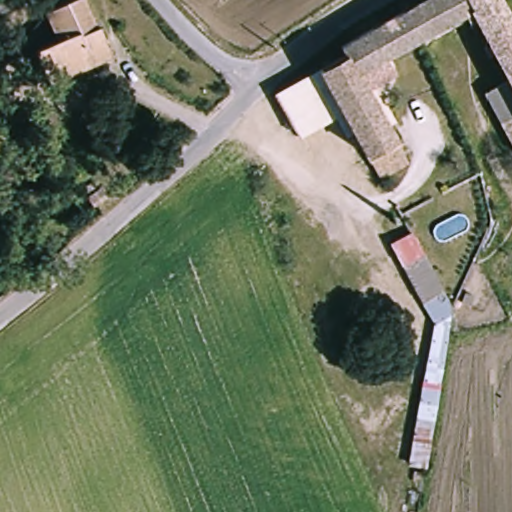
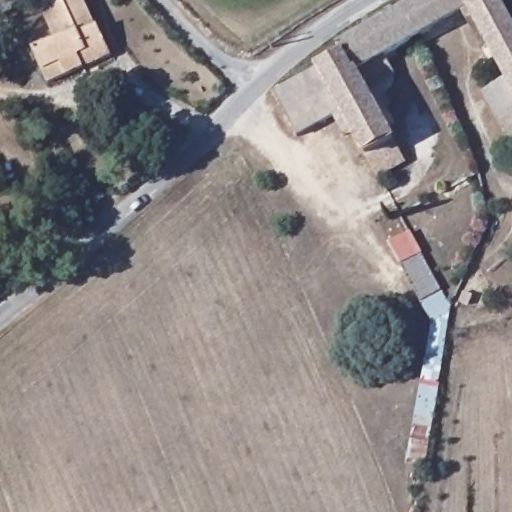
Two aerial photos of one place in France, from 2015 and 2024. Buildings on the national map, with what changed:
unchanged [(36,76),(25,55),(48,43),(34,18),(66,0),(72,0),(95,44),(101,55),(77,68),(59,78),(41,87),(36,76)]
unchanged [(407,2),(411,7),(425,0),(500,0),(512,24),(512,33),(489,44),(480,48),(460,17),(419,37),(402,4),(407,2)]
unchanged [(353,71),(344,53),(338,46),(372,28),(368,22),(377,18),(380,24),(400,13),(397,7),(402,4),(419,37),(353,71)]
unchanged [(510,83),(489,44),(512,33),(512,87),(510,83)]
unchanged [(336,108),(315,69),(344,53),(353,71),(389,143),(395,156),(370,170),(363,159),(336,108)]
unchanged [(289,130),(270,94),(315,69),(336,108),(289,130)]
unchanged [(490,93),(510,83),(512,87),(512,137),(490,93)]
unchanged [(407,261),(402,249),(414,245),(444,319),(426,431),(410,428),(427,325),(397,266),(407,261)]

